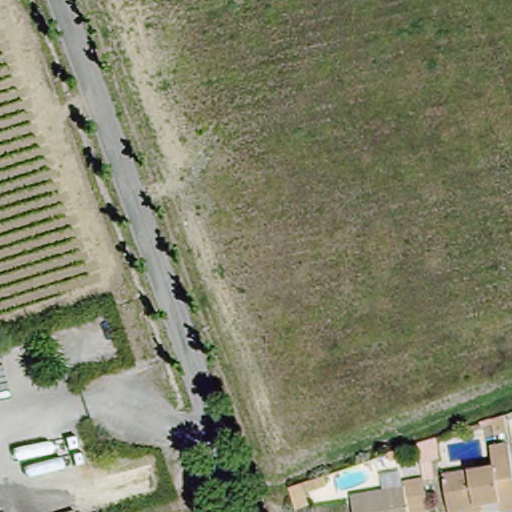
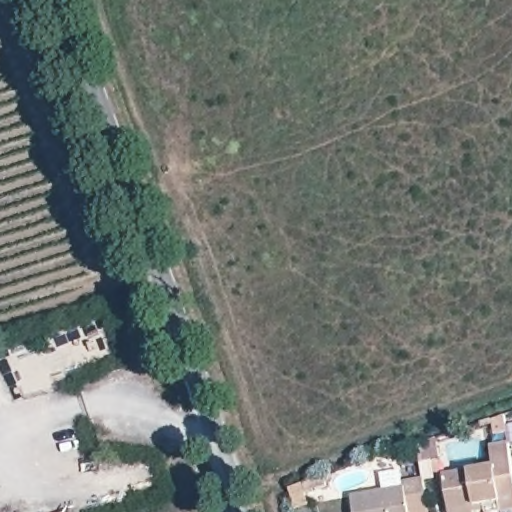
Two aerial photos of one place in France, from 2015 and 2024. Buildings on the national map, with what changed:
unchanged [(447,507),(442,475),(495,465),(492,448),(511,442),(512,448),(512,512),(501,512),(500,507),(477,511),(477,512),(447,512),(447,507)]
unchanged [(329,488),(309,496),(309,504),(299,508),(290,485),(323,473),(329,488)]
unchanged [(356,496),(408,487),(406,480),(428,477),(433,512),(358,512),(356,496)]

